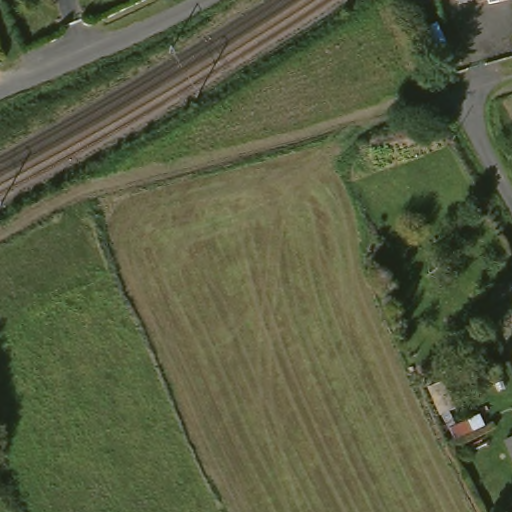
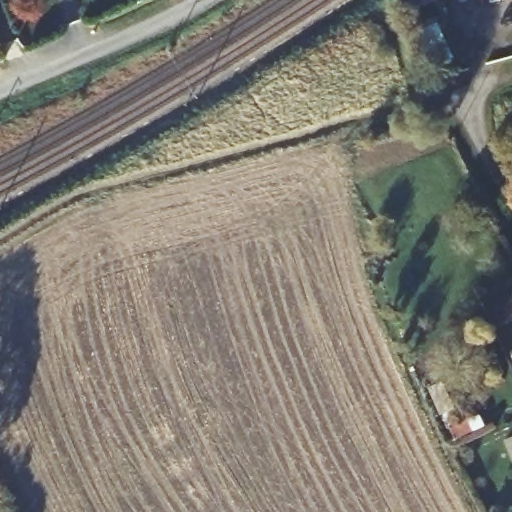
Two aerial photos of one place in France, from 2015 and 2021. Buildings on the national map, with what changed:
unchanged [(449,0),(426,12),(421,0),(449,0)]
unchanged [(435,417),(425,393),(437,387),(443,385),(453,408),(447,412),(435,417)]

